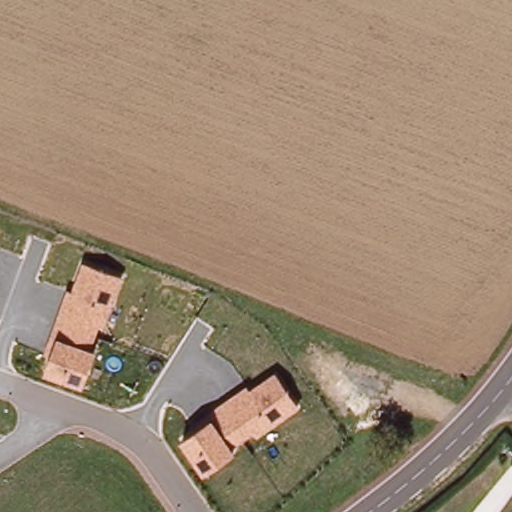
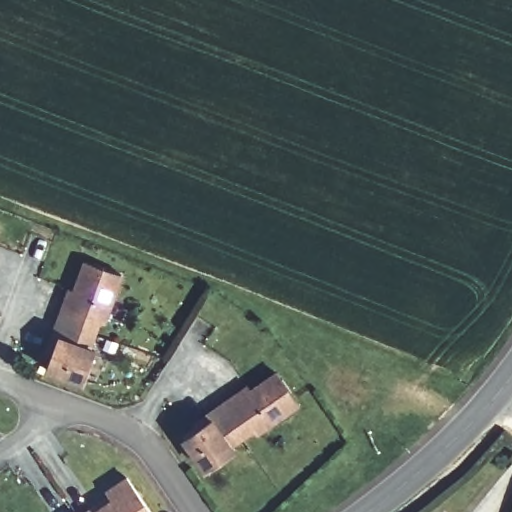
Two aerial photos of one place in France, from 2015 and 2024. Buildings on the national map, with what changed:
unchanged [(44,352),(67,288),(72,289),(82,261),(123,276),(105,323),(100,321),(91,347),(97,350),(84,385),(44,371),(51,352),(44,352)]
unchanged [(196,419),(246,386),(248,388),(275,372),(298,406),(258,436),(255,432),(231,445),(235,450),(204,471),(180,439),(199,425),(196,419)]
new [(107,487),(127,473),(155,512),(81,512),(94,502),(110,492),(107,487)]
new [(78,512),(74,512),(76,510),(78,512)]

